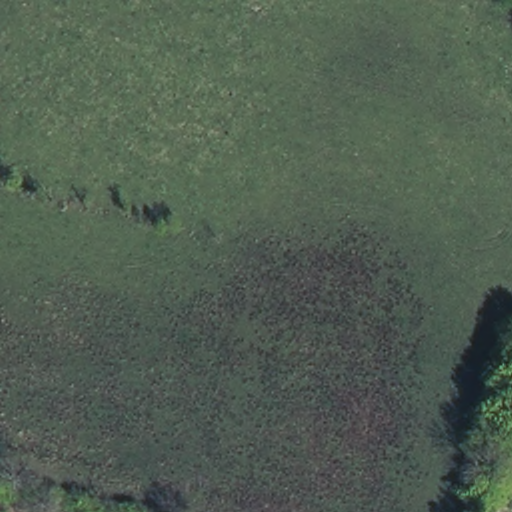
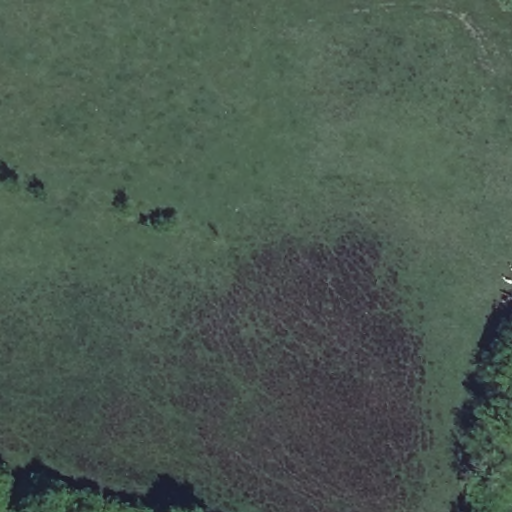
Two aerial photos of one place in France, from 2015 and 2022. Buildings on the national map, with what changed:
[]

